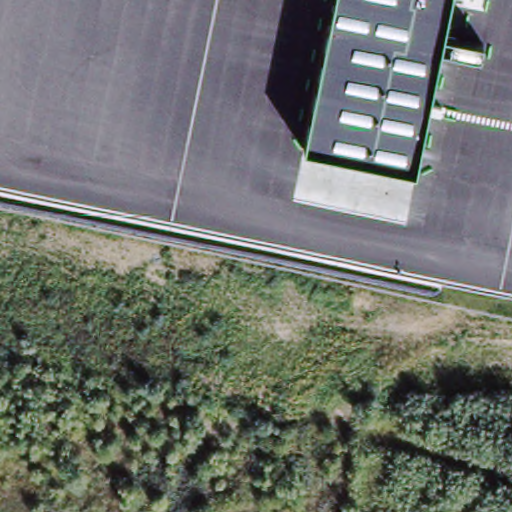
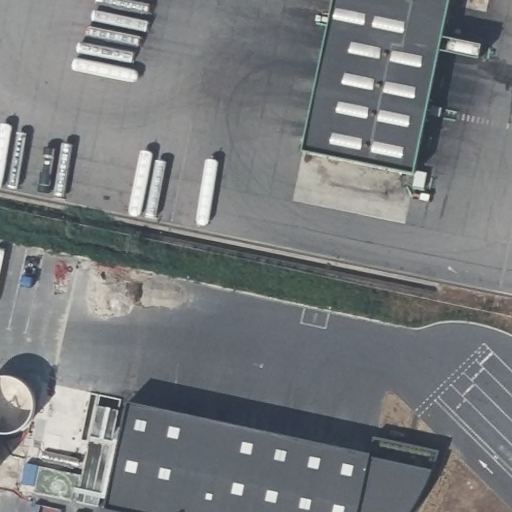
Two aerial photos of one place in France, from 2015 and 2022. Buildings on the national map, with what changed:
unchanged [(337,0),(452,0),(445,36),(485,44),(482,59),(441,51),(417,174),(306,151),(337,0)]
new [(386,437),(452,451),(447,469),(440,486),(429,506),(427,504),(420,512),(119,512),(117,512),(140,404),(382,457),(386,437)]

